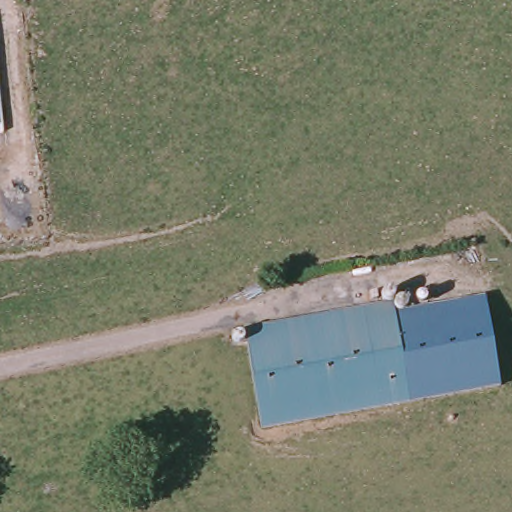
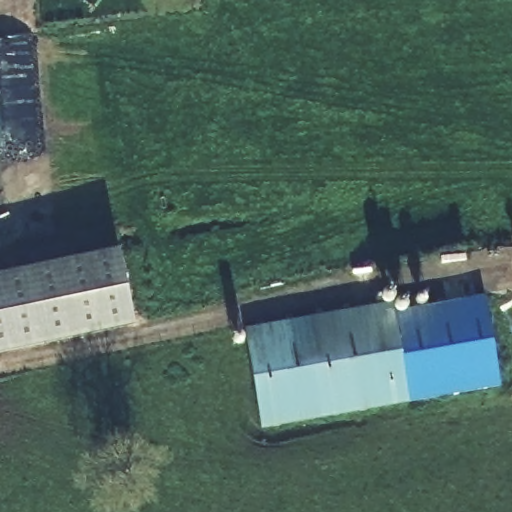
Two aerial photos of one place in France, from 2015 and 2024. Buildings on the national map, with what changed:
new [(132,325),(0,352),(0,275),(117,251),(132,325)]
unchanged [(393,307),(484,293),(499,388),(408,402),(393,307)]
unchanged [(391,297),(393,307),(408,402),(259,425),(243,322),(391,297)]

